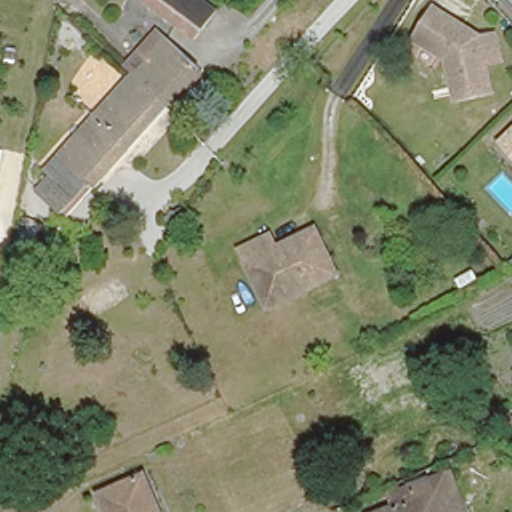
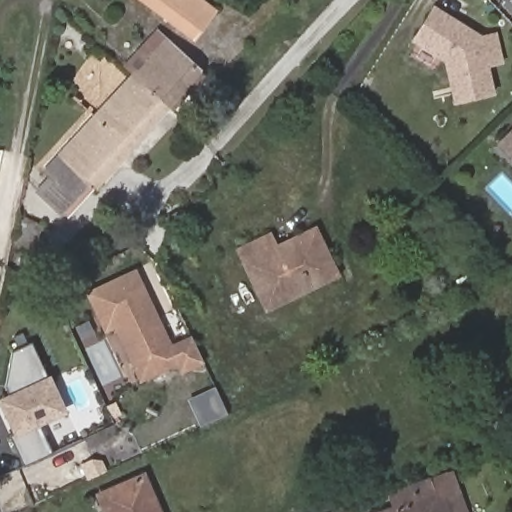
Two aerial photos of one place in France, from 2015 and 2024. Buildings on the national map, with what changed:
unchanged [(200,0),(214,10),(193,38),(144,0),(200,0)]
unchanged [(499,41),(506,67),(491,71),(497,99),(461,107),(451,66),(419,46),(438,14),(461,28),(475,37),(487,44),(499,41)]
unchanged [(131,74),(124,67),(156,31),(201,71),(167,108),(131,74)]
unchanged [(128,150),(130,152),(95,189),(90,185),(62,215),(36,190),(50,175),(45,170),(131,74),(167,108),(128,150)]
unchanged [(512,138),(512,162),(500,150),(512,138)]
unchanged [(42,232),(37,261),(19,252),(25,224),(42,232)]
unchanged [(332,285),(261,318),(233,259),(265,244),(271,257),(310,239),(332,285)]
new [(172,343),(191,335),(204,362),(180,373),(177,365),(139,382),(115,329),(105,332),(85,292),(136,268),(172,343)]
new [(33,342),(55,388),(51,390),(61,412),(38,422),(52,453),(23,465),(9,436),(16,433),(0,398),(10,351),(33,342)]
unchanged [(512,419),(512,430),(500,436),(495,438),(488,422),(509,413),(512,419)]
unchanged [(390,509),(386,500),(444,477),(459,512),(383,512),(390,509)]
unchanged [(97,506),(142,486),(153,512),(100,512),(97,506)]

